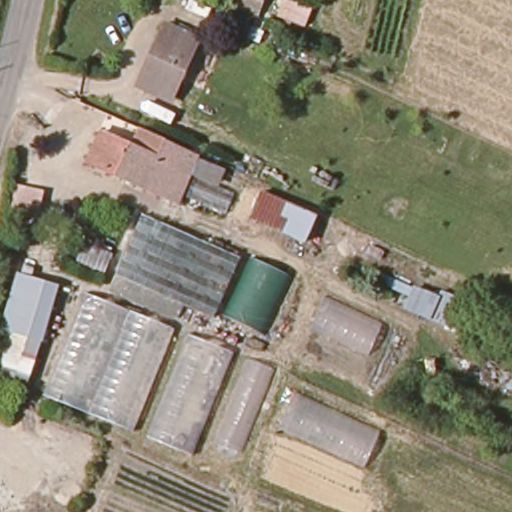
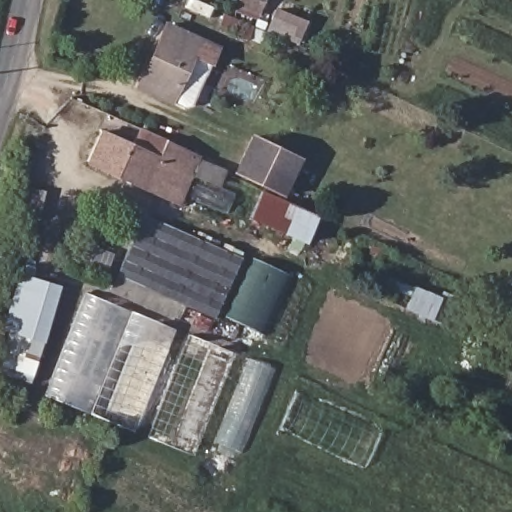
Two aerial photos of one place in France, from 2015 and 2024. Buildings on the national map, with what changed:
unchanged [(241,0),(263,0),(268,2),(261,17),(238,7),(241,0)]
unchanged [(199,40),(172,100),(141,84),(168,25),(199,40)]
unchanged [(102,131),(177,162),(181,152),(228,172),(222,187),(235,192),(224,212),(188,195),(192,182),(177,176),(168,200),(87,165),(102,131)]
new [(283,195),(232,172),(250,133),(301,157),(283,195)]
unchanged [(307,245),(251,223),(266,191),(320,217),(307,245)]
unchanged [(46,399),(86,292),(108,297),(145,216),(292,273),(265,335),(220,316),(207,342),(236,353),(193,456),(46,399)]
unchanged [(61,287),(33,382),(0,372),(0,366),(8,333),(2,332),(21,276),(61,287)]
unchanged [(434,323),(407,313),(418,288),(444,300),(434,323)]

